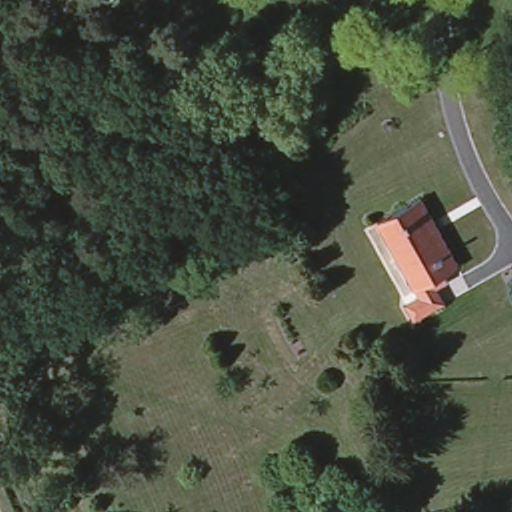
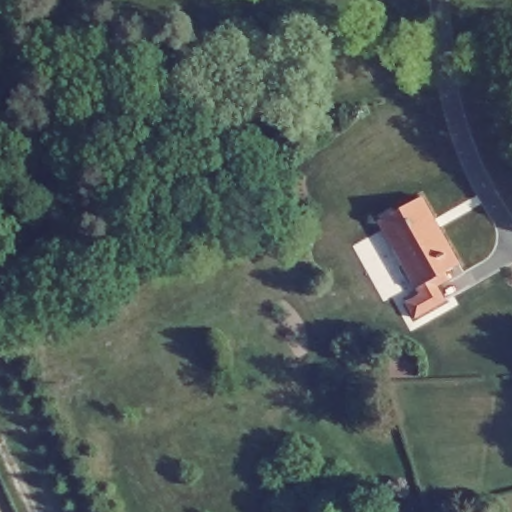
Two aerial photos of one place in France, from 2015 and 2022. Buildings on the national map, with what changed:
unchanged [(425,194),(465,260),(415,291),(373,224),(425,194)]
unchanged [(446,298),(416,315),(407,302),(421,294),(418,290),(437,278),(446,298)]

